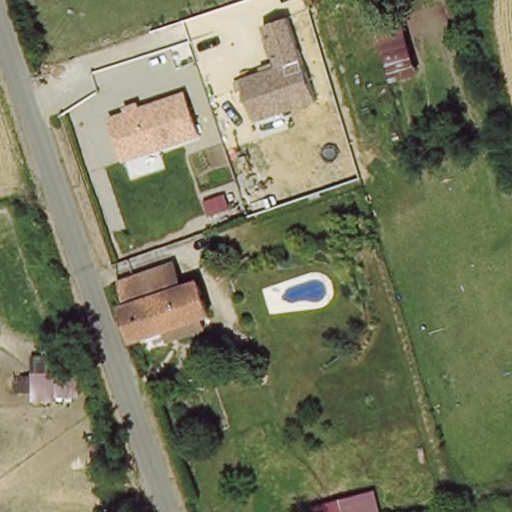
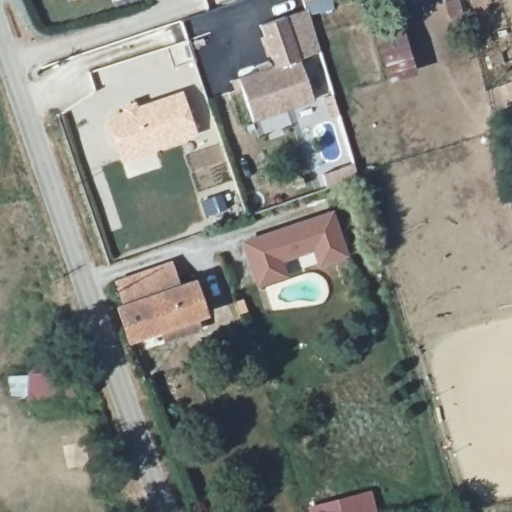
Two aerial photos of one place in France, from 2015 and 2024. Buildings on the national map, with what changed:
unchanged [(318,0),(305,4),(304,0),(318,0)]
unchanged [(424,73),(394,80),(372,17),(402,5),(424,73)]
unchanged [(239,77),(275,66),(262,26),(287,18),(315,103),(255,121),(239,77)]
unchanged [(107,118),(124,112),(123,109),(139,103),(140,108),(185,93),(200,138),(125,161),(107,118)]
new [(355,166),(360,180),(328,190),(323,176),(355,166)]
new [(330,211),(344,251),(317,260),(312,250),(281,261),(284,272),(254,282),(241,241),(330,211)]
unchanged [(174,263),(182,287),(128,305),(120,281),(174,263)]
unchanged [(211,313),(135,339),(123,307),(128,305),(182,287),(199,281),(211,313)]
unchanged [(29,372),(92,372),(110,438),(92,440),(84,406),(28,405),(29,372)]
unchanged [(361,512),(312,512),(310,507),(357,494),(361,512)]

